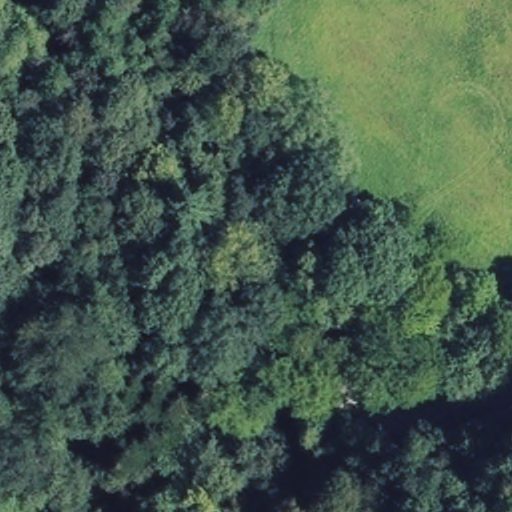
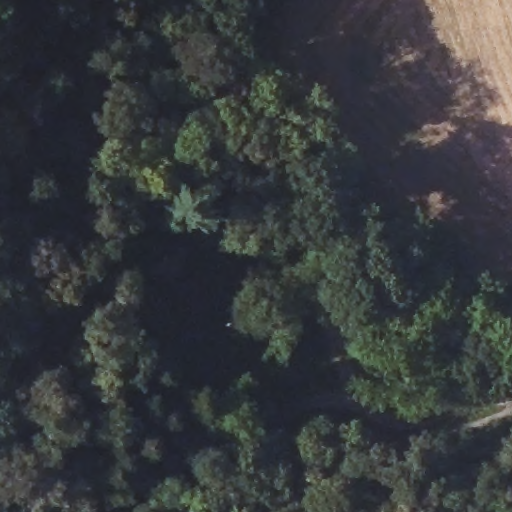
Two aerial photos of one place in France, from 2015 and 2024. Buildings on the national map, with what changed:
unchanged [(387,210),(352,251),(329,230),(362,189),(387,210)]

